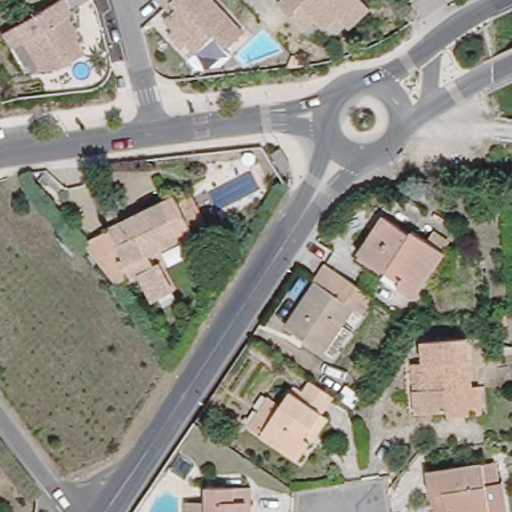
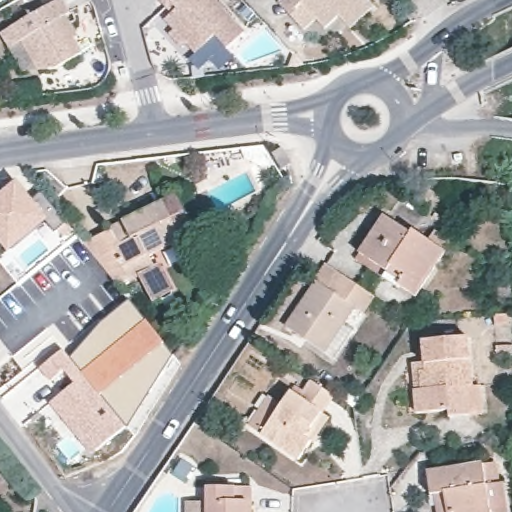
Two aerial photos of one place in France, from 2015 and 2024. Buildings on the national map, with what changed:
unchanged [(165,20),(173,12),(166,5),(161,0),(215,0),(245,32),(227,49),(215,35),(196,54),(187,44),(183,48),(169,34),(174,29),(165,20)]
unchanged [(287,0),(359,0),(372,14),(350,34),(339,21),(326,34),(316,24),(304,35),(294,24),(278,7),(285,1),(287,0)]
unchanged [(35,66),(22,46),(10,53),(1,37),(14,30),(61,2),(70,17),(66,20),(78,41),(75,44),(83,57),(76,62),(56,74),(49,75),(40,75),(35,66)]
unchanged [(117,28),(110,30),(106,14),(112,11),(117,28)]
unchanged [(293,164),(284,169),(274,153),(283,147),(293,164)]
unchanged [(161,261),(124,280),(112,266),(90,238),(117,225),(119,227),(131,221),(129,216),(197,183),(206,201),(215,220),(200,227),(155,250),(161,261)]
new [(4,199),(9,204),(22,193),(44,220),(9,247),(0,237),(0,201),(4,199)]
unchanged [(359,252),(385,215),(423,240),(432,227),(451,240),(445,250),(447,252),(417,297),(399,285),(401,281),(388,272),(359,252)]
unchanged [(118,227),(117,225),(120,221),(129,216),(131,221),(118,227)]
unchanged [(324,350),(287,327),(317,281),(315,279),(326,262),(375,296),(364,314),(353,307),(343,323),(353,330),(335,357),(324,350)]
new [(97,326),(128,300),(175,356),(128,428),(88,381),(69,356),(97,326)]
unchanged [(510,324),(495,325),(494,315),(509,313),(510,324)]
unchanged [(465,415),(445,416),(445,410),(411,412),(409,390),(407,363),(420,362),(418,340),(464,335),(469,386),(475,385),(478,413),(465,415)]
new [(63,348),(69,356),(88,381),(128,428),(91,455),(49,404),(72,383),(63,372),(49,383),(37,369),(63,348)]
unchanged [(300,465),(249,430),(269,400),(282,409),(295,390),(304,395),(312,385),(334,400),(323,416),(330,420),(312,446),(300,465)]
unchanged [(430,493),(425,494),(422,471),(479,461),(482,485),(498,482),(503,512),(433,512),(430,493)]
unchanged [(254,512),(190,512),(190,506),(211,506),(211,491),(258,492),(258,505),(254,505),(254,512)]

